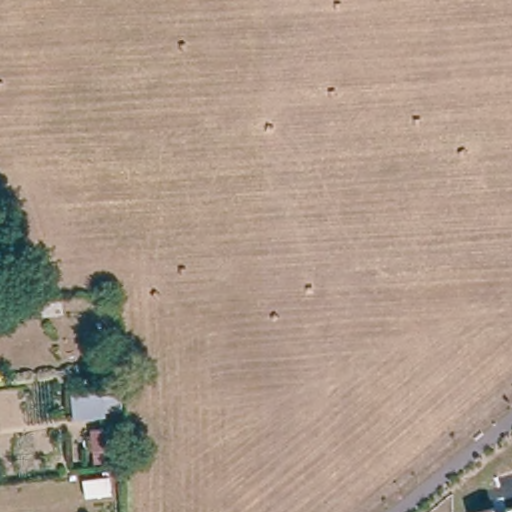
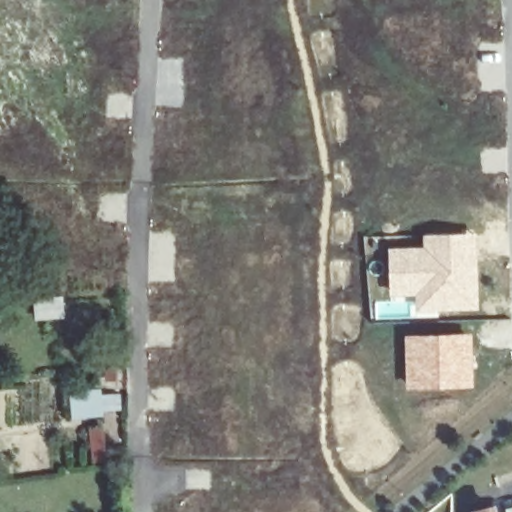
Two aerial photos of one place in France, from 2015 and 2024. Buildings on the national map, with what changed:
new [(391,295),(389,247),(423,246),(423,235),(477,232),(480,310),(416,311),(416,295),(391,295)]
new [(472,332),(475,386),(407,389),(405,335),(472,332)]
unchanged [(101,391),(103,411),(76,415),(72,396),(101,391)]
unchanged [(104,428),(105,445),(94,447),(92,430),(104,428)]
unchanged [(499,512),(472,512),(471,510),(496,504),(499,512)]
unchanged [(507,509),(512,508),(512,512),(510,512),(507,509)]

